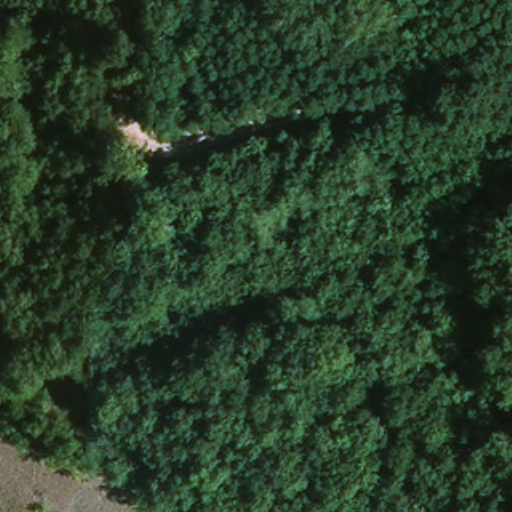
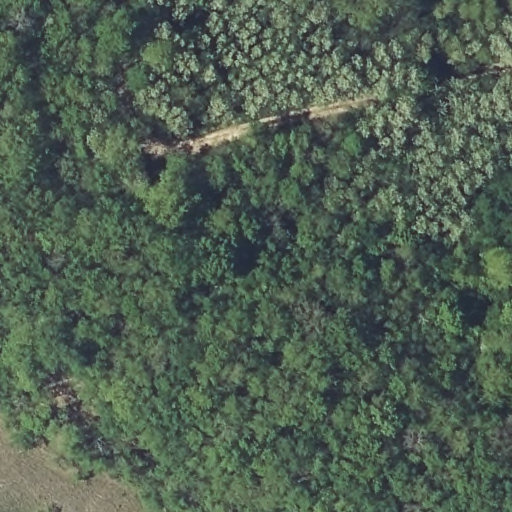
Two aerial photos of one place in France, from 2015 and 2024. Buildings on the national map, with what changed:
[]

